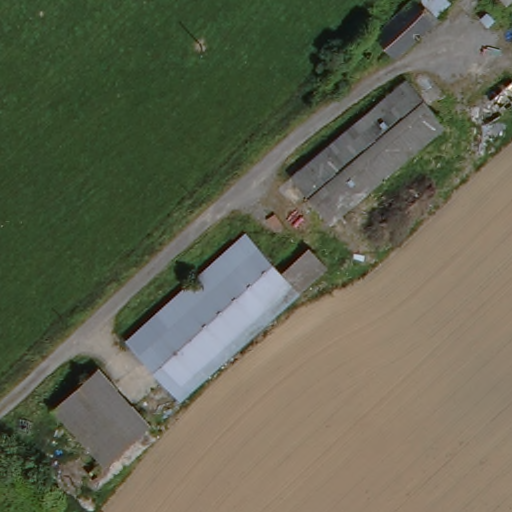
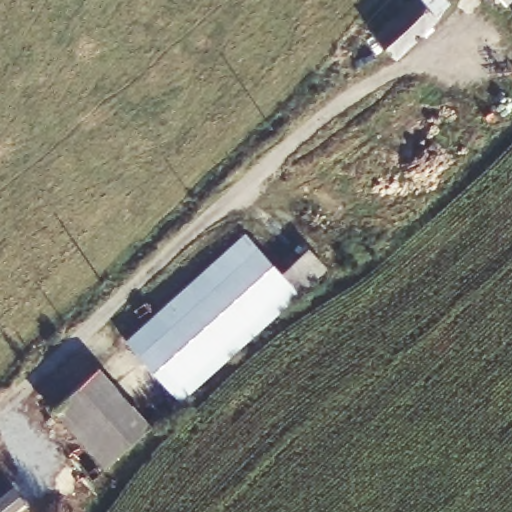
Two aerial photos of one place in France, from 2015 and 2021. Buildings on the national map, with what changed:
unchanged [(435,14),(438,18),(396,50),(378,30),(413,0),(450,0),(451,1),(435,14)]
unchanged [(500,0),(511,0),(505,5),(500,0)]
demolished [(450,126),(334,222),(294,175),(409,80),(450,126)]
demolished [(512,103),(512,116),(484,140),(471,124),(505,95),(512,103)]
unchanged [(284,275),(302,260),(310,267),(320,258),(332,270),(183,401),(129,342),(249,238),(284,275)]
unchanged [(153,423),(111,461),(58,402),(100,364),(153,423)]

